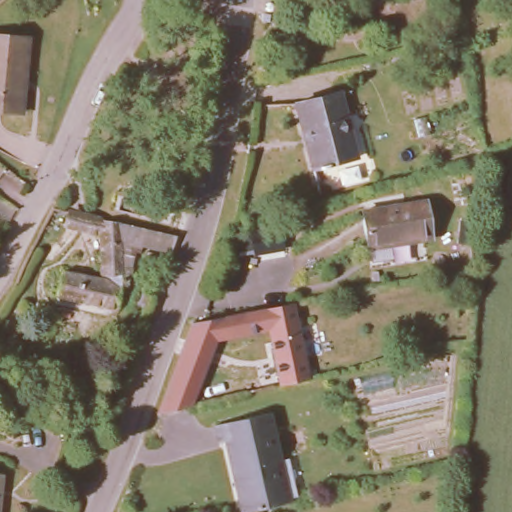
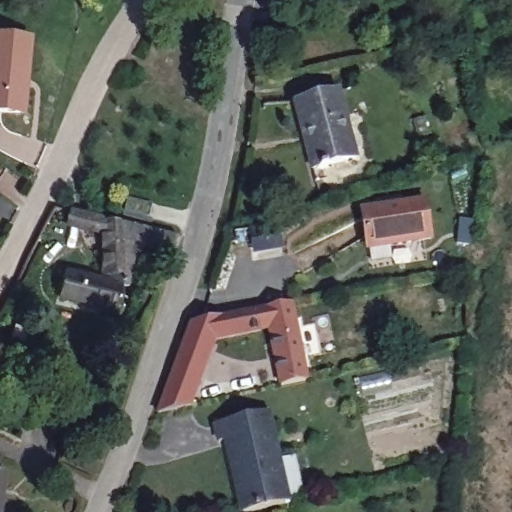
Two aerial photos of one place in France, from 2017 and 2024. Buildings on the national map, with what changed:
unchanged [(0,113),(0,39),(24,40),(20,114),(0,113)]
unchanged [(288,109),(330,94),(353,157),(312,172),(303,147),(297,133),(288,109)]
unchanged [(355,211),(418,202),(423,240),(362,250),(355,211)]
unchanged [(93,278),(95,235),(78,230),(78,214),(120,225),(173,240),(166,255),(120,244),(117,311),(53,295),(60,270),(93,278)]
unchanged [(263,332),(260,308),(287,302),(300,376),(273,383),(263,332)]
unchanged [(263,332),(213,343),(181,409),(158,414),(148,413),(185,329),(260,308),(263,332)]
unchanged [(219,445),(215,427),(269,416),(288,506),(261,512),(239,512),(235,490),(225,443),(219,445)]
unchanged [(0,484),(0,477),(1,477),(0,484)]

